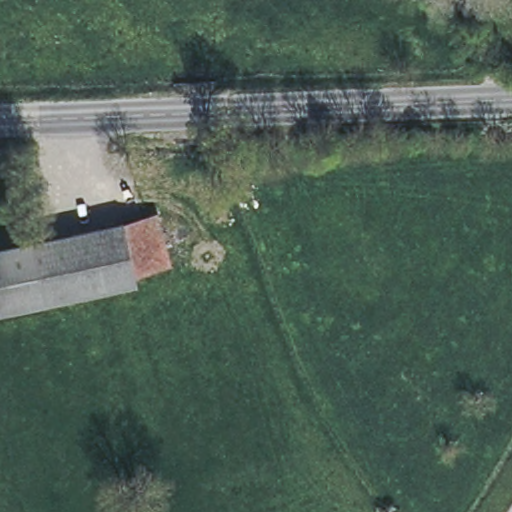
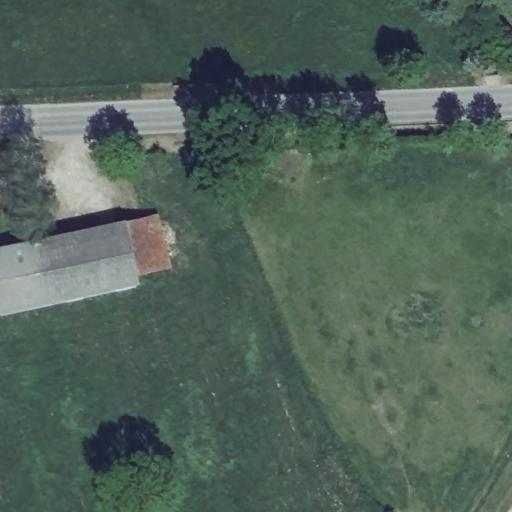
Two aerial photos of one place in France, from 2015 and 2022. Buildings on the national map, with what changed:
unchanged [(158,220),(169,270),(137,276),(125,227),(158,220)]
unchanged [(140,288),(52,307),(38,246),(125,227),(137,276),(140,288)]
unchanged [(38,246),(52,307),(0,319),(0,254),(38,246)]

